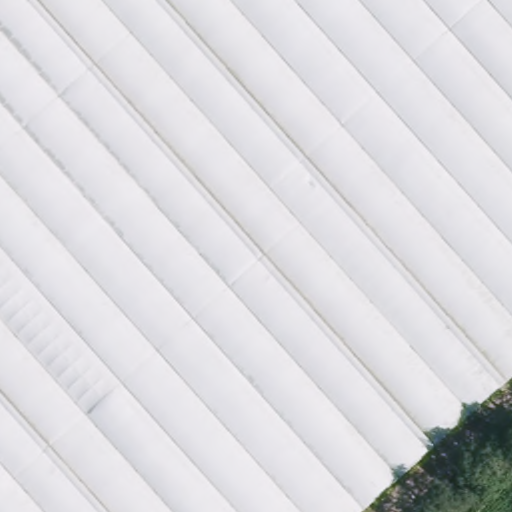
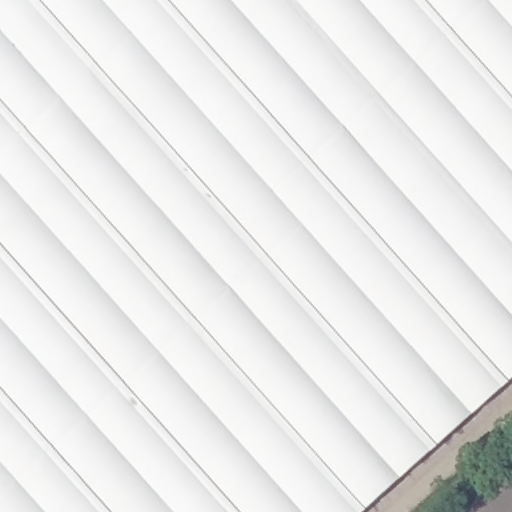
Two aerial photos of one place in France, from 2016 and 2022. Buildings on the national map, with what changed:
unchanged [(512,382),(365,512),(0,512),(0,0),(512,0),(512,382)]

